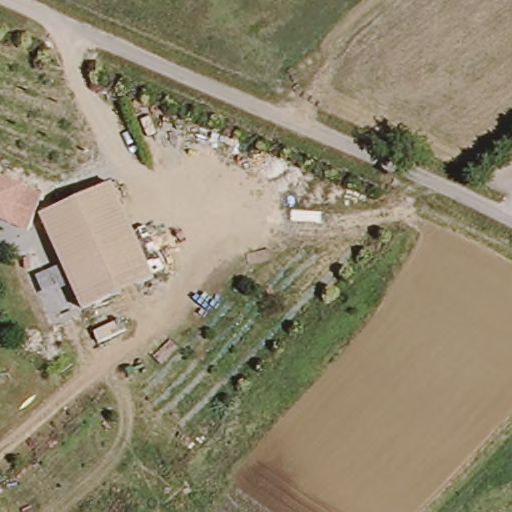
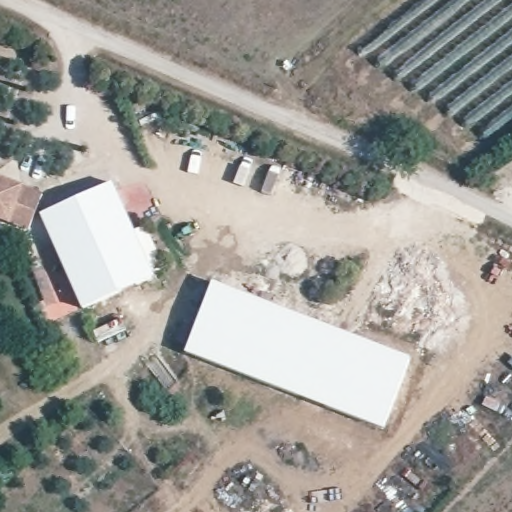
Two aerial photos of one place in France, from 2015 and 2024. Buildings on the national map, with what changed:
unchanged [(40,195),(27,232),(0,222),(0,180),(40,195)]
unchanged [(40,216),(108,184),(149,280),(80,311),(40,216)]
new [(187,353),(214,283),(411,360),(383,429),(187,353)]

